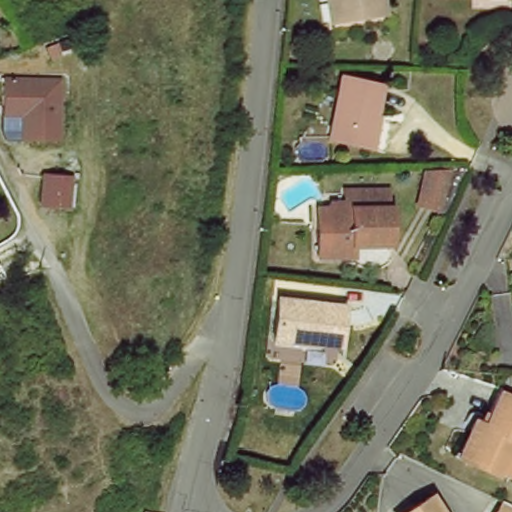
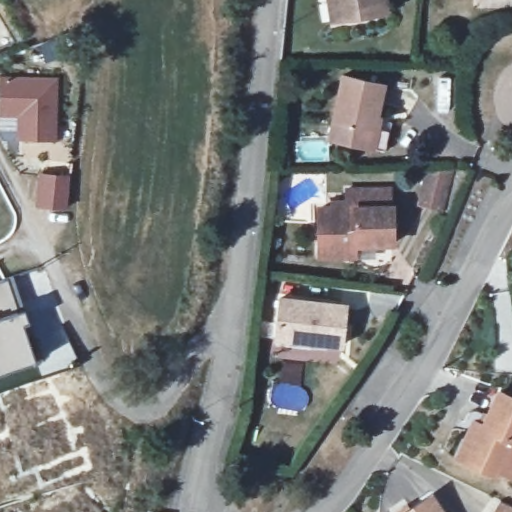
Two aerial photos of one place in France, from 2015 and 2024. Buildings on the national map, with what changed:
unchanged [(374,11),(343,15),(333,16),(332,0),(390,0),(390,9),(374,11)]
unchanged [(370,149),(327,141),(342,75),(386,84),(370,149)]
unchanged [(0,107),(0,82),(53,76),(60,136),(25,141),(20,109),(0,111),(0,107)]
unchanged [(426,196),(437,175),(459,174),(446,204),(426,196)]
unchanged [(40,179),(70,179),(69,209),(39,209),(40,179)]
unchanged [(353,253),(317,253),(318,206),(347,206),(347,187),(390,188),(388,207),(391,207),(391,242),(366,242),(353,242),(353,253)]
new [(0,371),(0,282),(13,278),(24,310),(28,322),(33,335),(26,338),(34,360),(0,371)]
unchanged [(343,345),(276,342),(279,300),(348,305),(343,345)]
unchanged [(475,422),(483,426),(498,393),(512,398),(512,447),(510,446),(497,475),(466,462),(458,458),(465,441),(475,422)]
unchanged [(446,512),(408,512),(430,494),(446,512)]
unchanged [(512,508),(512,512),(502,512),(505,505),(512,508)]
unchanged [(161,512),(150,512),(151,509),(161,512)]

